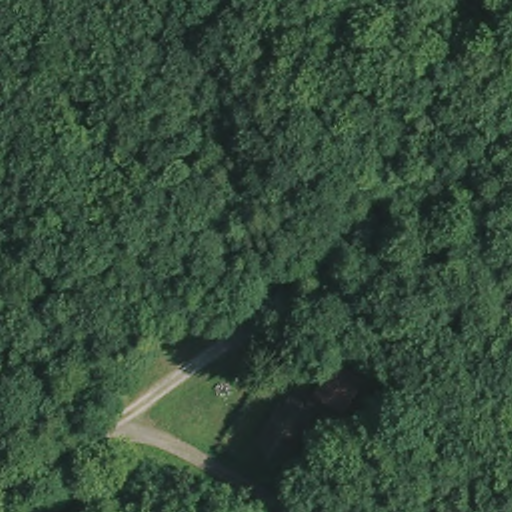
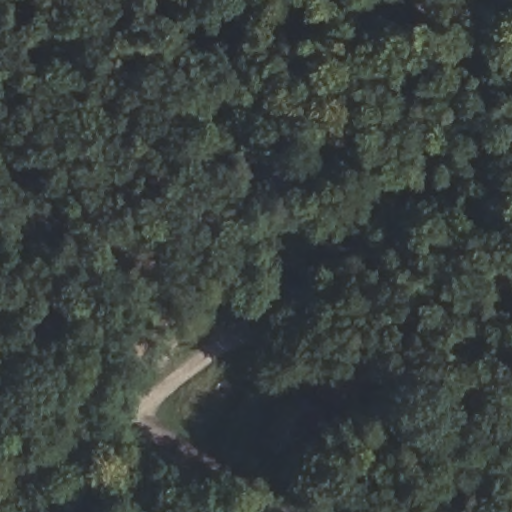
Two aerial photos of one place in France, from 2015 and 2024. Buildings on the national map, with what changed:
unchanged [(329,391),(338,376),(361,393),(353,407),(348,414),(334,405),(339,398),(329,391)]
unchanged [(294,457),(266,441),(288,404),(293,407),(299,397),(311,404),(321,411),(294,457)]

